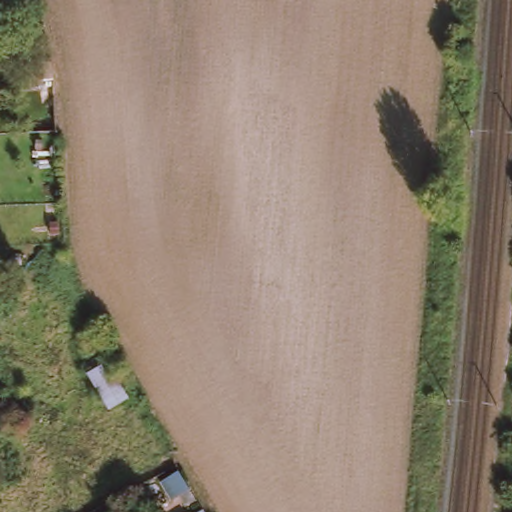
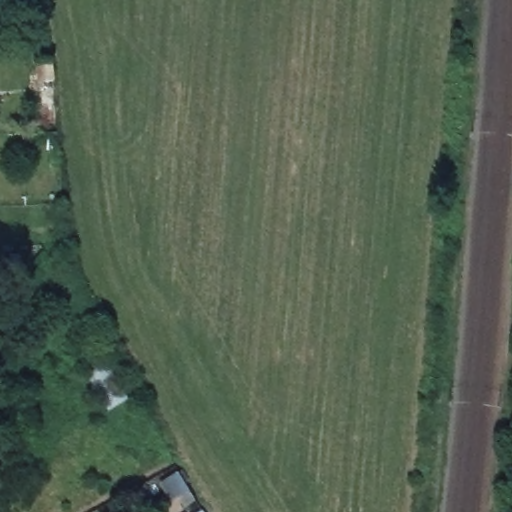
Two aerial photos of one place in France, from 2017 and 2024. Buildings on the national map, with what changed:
unchanged [(123,419),(102,384),(121,373),(142,409),(123,419)]
unchanged [(190,508),(187,504),(182,497),(175,501),(164,484),(181,473),(192,491),(197,500),(200,503),(190,508)]

